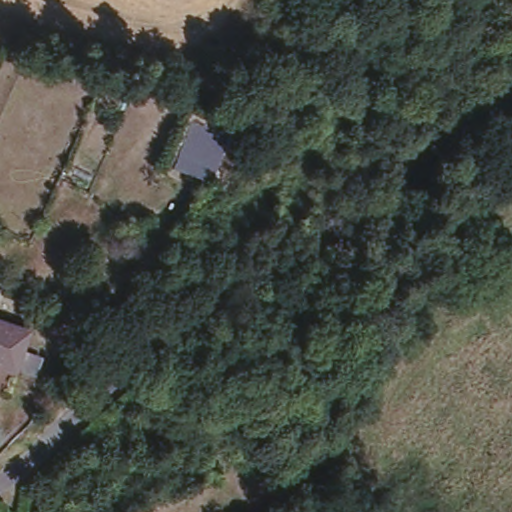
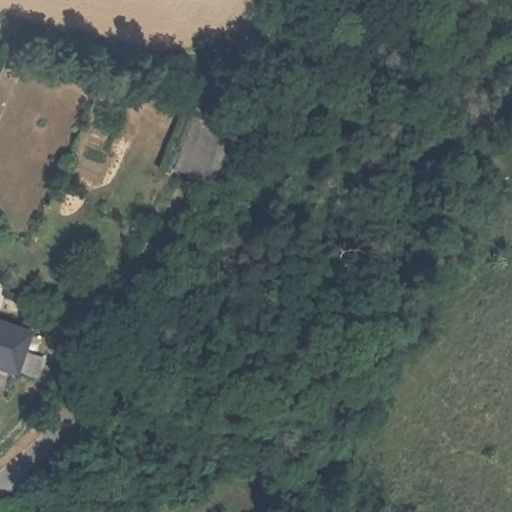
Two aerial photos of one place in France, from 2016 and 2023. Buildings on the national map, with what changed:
unchanged [(19,357),(35,362),(30,381),(15,375),(0,371),(0,327),(26,335),(19,357)]

